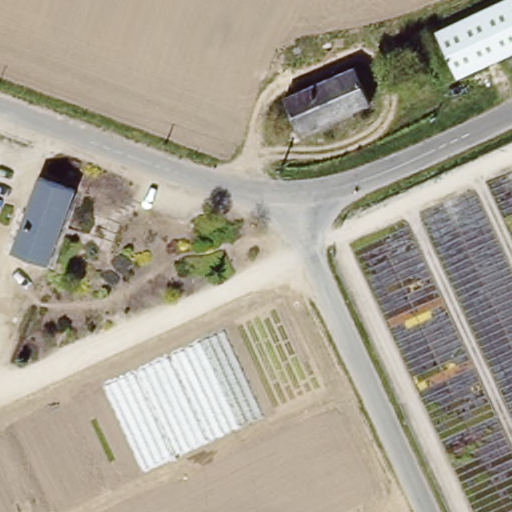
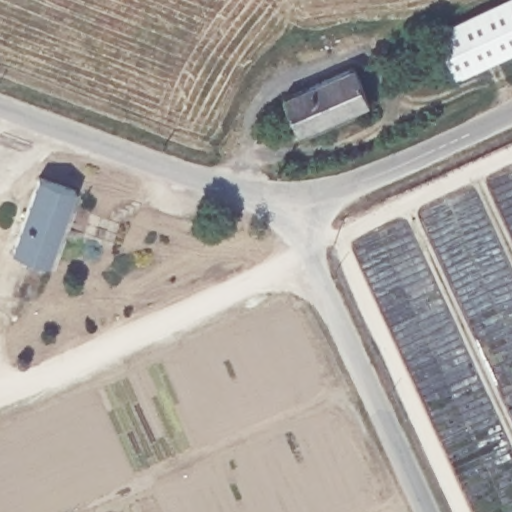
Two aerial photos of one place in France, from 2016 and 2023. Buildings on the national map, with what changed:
unchanged [(457,76),(435,32),(502,0),(512,0),(512,51),(457,76)]
unchanged [(302,130),(282,94),(350,63),(370,99),(302,130)]
unchanged [(10,252),(39,179),(78,191),(49,265),(10,252)]

